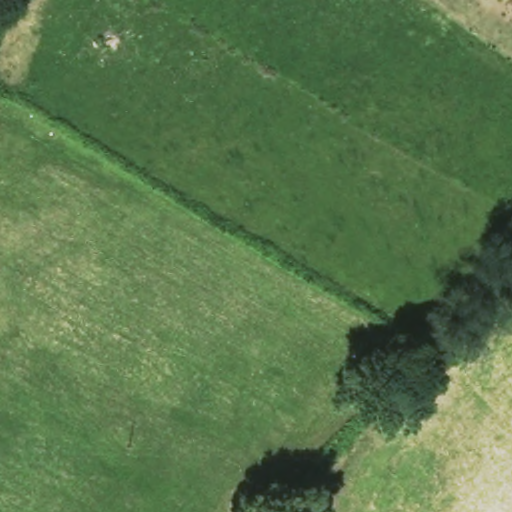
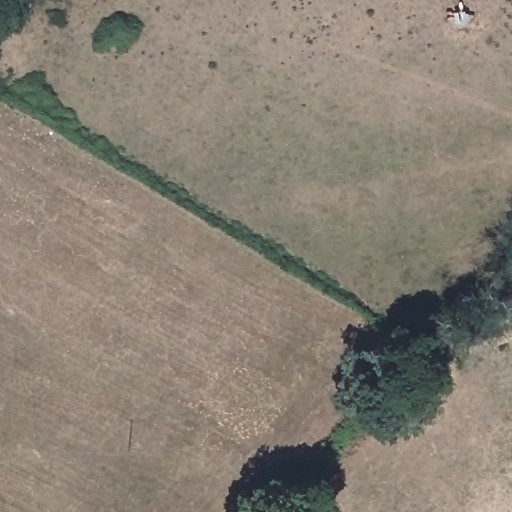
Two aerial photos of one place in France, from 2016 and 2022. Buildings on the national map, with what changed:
[]

